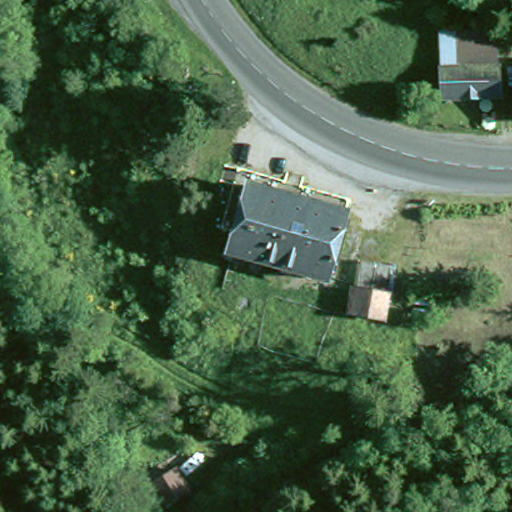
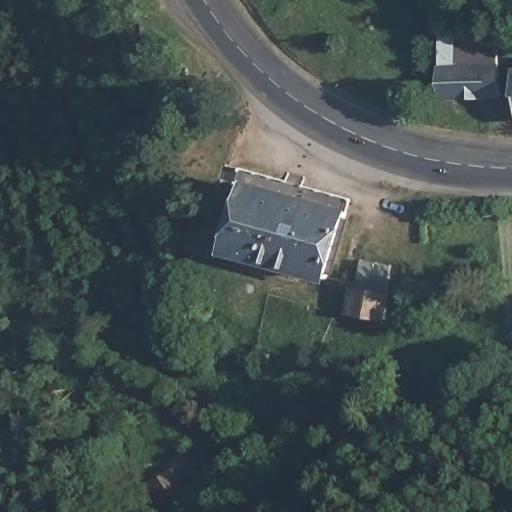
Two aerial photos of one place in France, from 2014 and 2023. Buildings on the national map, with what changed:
unchanged [(437,36),(491,33),(493,95),(439,98),(437,36)]
unchanged [(238,255),(242,235),(224,230),(237,181),(348,213),(331,279),(238,255)]
unchanged [(357,316),(360,290),(365,291),(369,262),(395,265),(390,295),(385,321),(357,316)]
unchanged [(178,467),(187,494),(166,501),(158,474),(178,467)]

